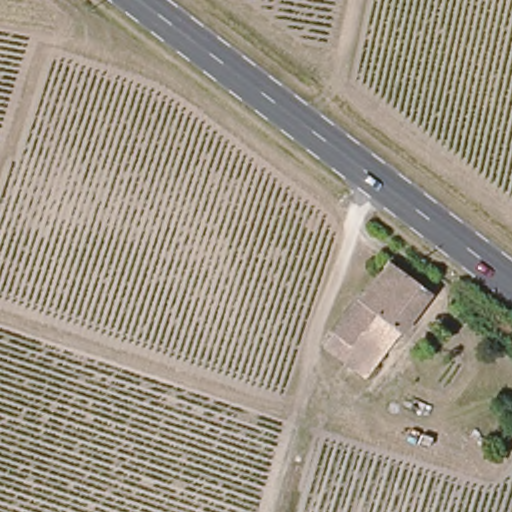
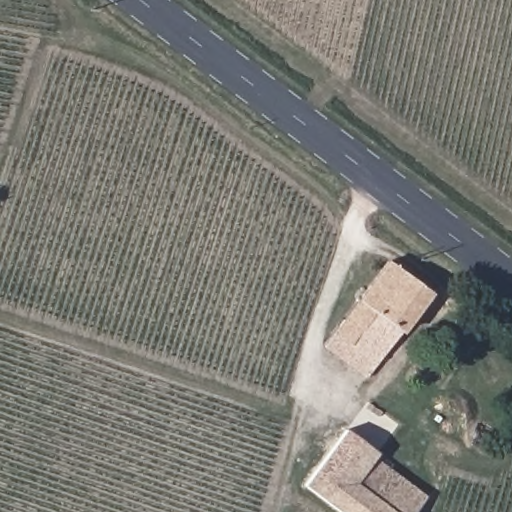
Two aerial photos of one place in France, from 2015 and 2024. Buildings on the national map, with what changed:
unchanged [(383,265),(425,297),(370,368),(328,336),(383,265)]
demolished [(483,462),(455,444),(462,435),(489,452),(483,462)]
new [(426,495),(413,512),(345,512),(310,486),(346,439),(426,495)]

